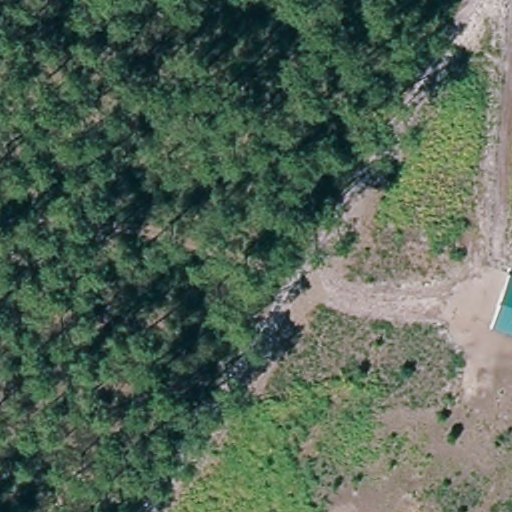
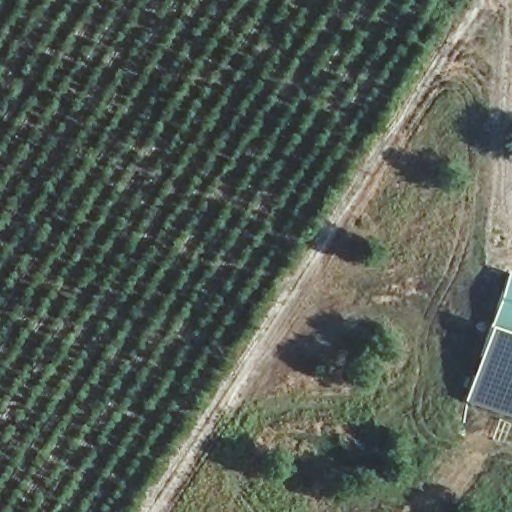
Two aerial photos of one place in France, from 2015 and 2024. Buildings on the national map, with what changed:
unchanged [(512,333),(490,325),(508,272),(512,273),(512,333)]
new [(512,420),(463,404),(490,325),(512,333),(512,420)]

